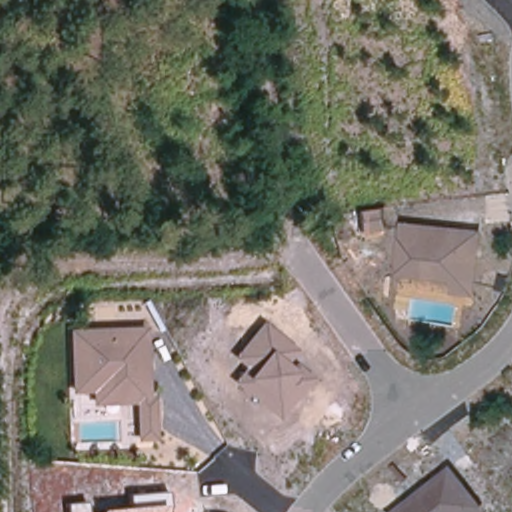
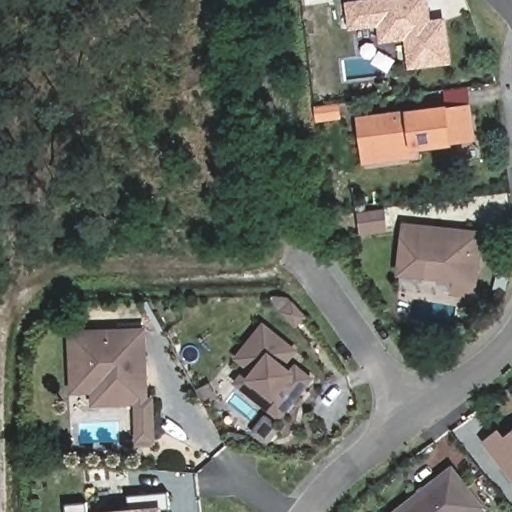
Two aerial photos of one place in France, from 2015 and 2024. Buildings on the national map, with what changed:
new [(394,0),(429,0),(432,23),(447,22),(452,62),(415,67),(410,38),(386,41),(383,24),(355,28),(352,5),(394,0)]
new [(472,108),(476,139),(416,147),(383,152),(379,120),(472,108)]
new [(379,120),(383,152),(416,147),(418,157),(367,164),(362,122),(379,120)]
unchanged [(397,276),(400,236),(401,222),(481,231),(476,296),(451,293),(453,282),(397,276)]
unchanged [(263,322),(297,349),(287,365),(292,370),(295,364),(313,380),(278,420),(234,383),(245,368),(234,359),(263,322)]
unchanged [(155,441),(135,442),(134,403),(92,406),(92,392),(71,393),(67,329),(147,326),(148,397),(154,396),(155,441)]
new [(500,428),(506,434),(512,430),(512,479),(483,442),(500,428)]
unchanged [(393,512),(451,465),(485,510),(483,512),(393,512)]
unchanged [(126,508),(128,495),(166,492),(167,508),(163,509),(163,512),(99,512),(99,510),(126,508)]
unchanged [(85,502),(85,512),(68,512),(67,504),(85,502)]

